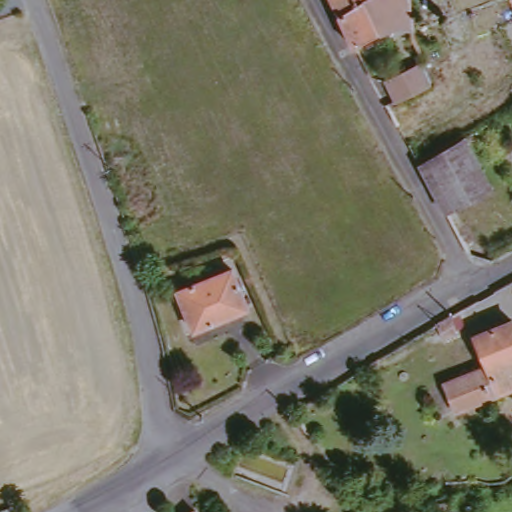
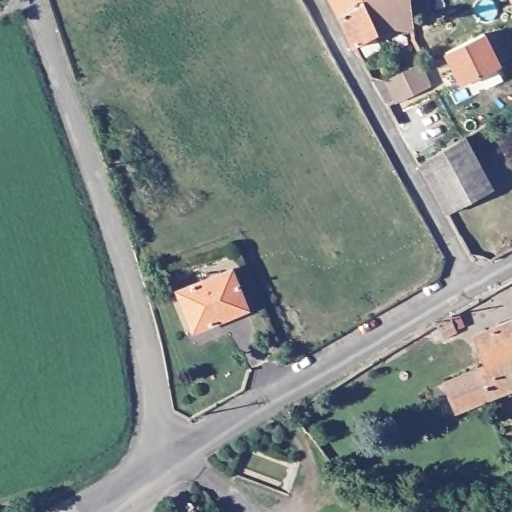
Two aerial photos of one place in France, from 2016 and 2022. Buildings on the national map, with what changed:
unchanged [(338,0),(384,0),(347,21),(338,0)]
unchanged [(362,53),(347,21),(384,0),(406,0),(412,36),(395,37),(362,53)]
unchanged [(512,5),(512,10),(510,6),(512,5)]
new [(487,34),(500,64),(461,84),(445,53),(487,34)]
unchanged [(377,89),(414,74),(424,97),(389,113),(377,89)]
unchanged [(425,166),(452,152),(472,142),(499,188),(452,216),(447,207),(425,166)]
unchanged [(187,289),(242,270),(256,309),(202,329),(187,289)]
unchanged [(492,370),(480,339),(512,327),(512,395),(488,405),(460,416),(450,387),(477,376),(492,370)]
unchanged [(208,512),(204,512),(207,510),(208,512)]

